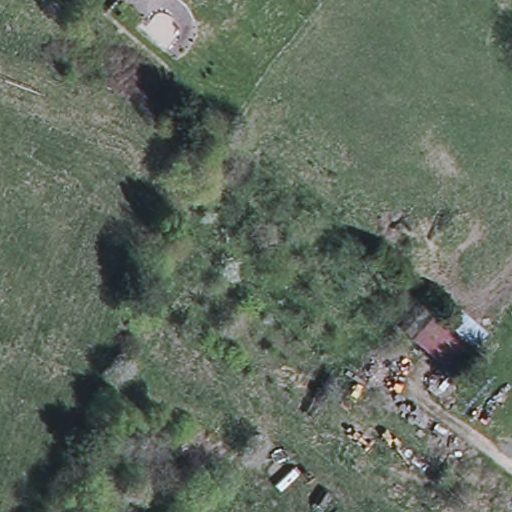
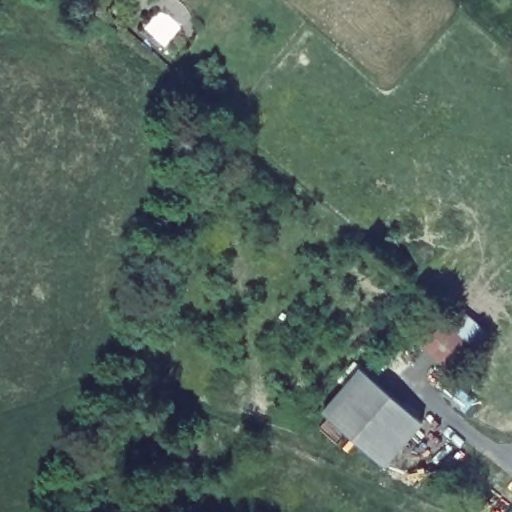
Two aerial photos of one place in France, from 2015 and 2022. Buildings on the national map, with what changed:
unchanged [(432,313),(469,344),(450,367),(412,336),(432,313)]
new [(358,371),(422,425),(387,469),(324,413),(358,371)]

